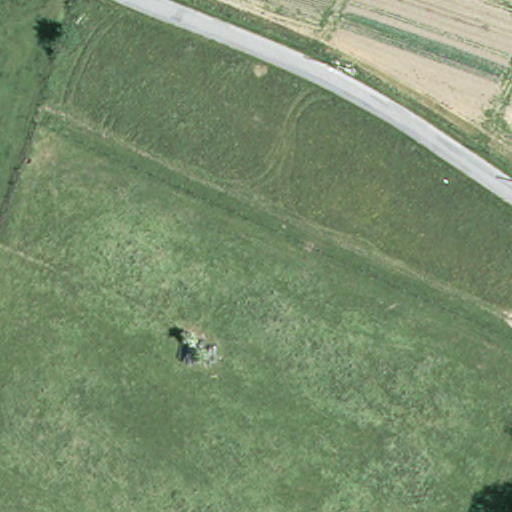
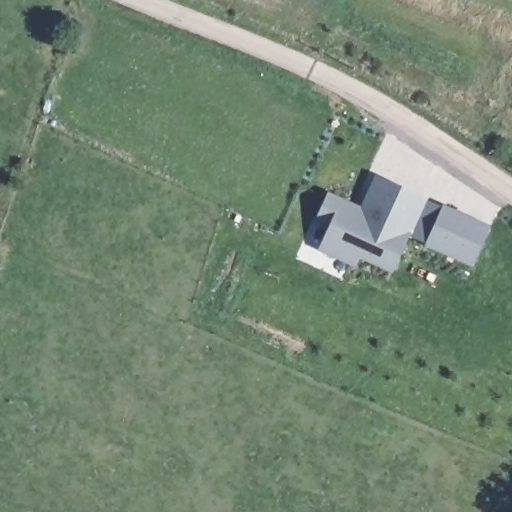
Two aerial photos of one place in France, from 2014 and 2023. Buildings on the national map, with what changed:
new [(424,200),(392,276),(359,261),(356,269),(318,251),(328,229),(314,222),(326,192),(360,208),(374,177),(424,200)]
new [(424,246),(424,243),(409,236),(424,200),(489,227),(471,268),(424,246)]

